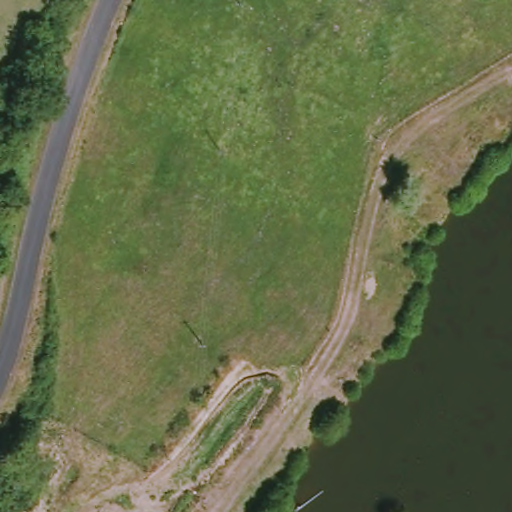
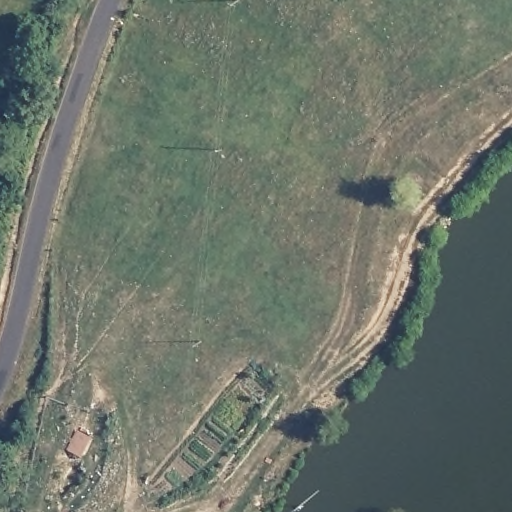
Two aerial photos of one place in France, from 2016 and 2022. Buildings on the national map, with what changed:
[]

